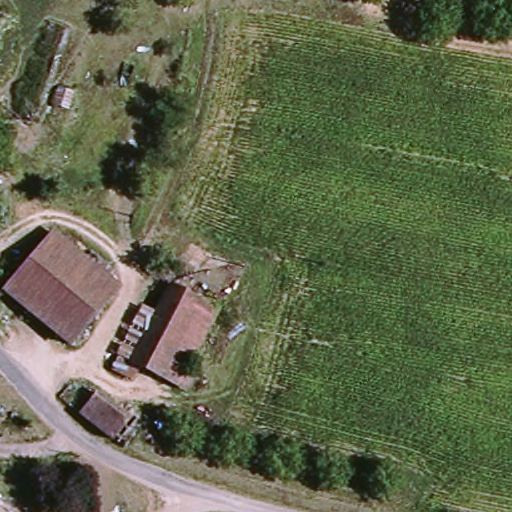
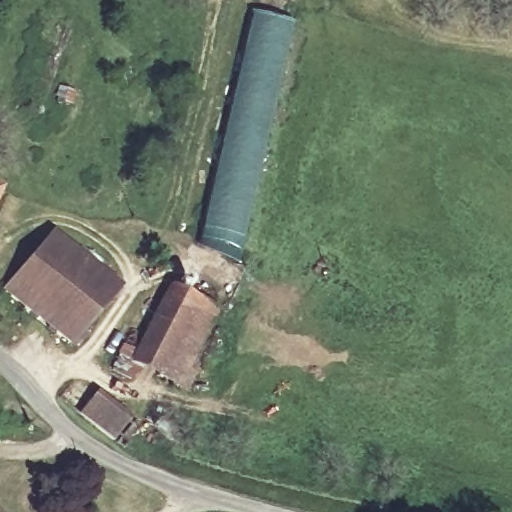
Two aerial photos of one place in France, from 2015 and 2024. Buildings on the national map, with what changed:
new [(227,107),(251,11),(291,22),(248,213),(230,205),(228,204),(229,201),(209,194),(227,107)]
unchanged [(1,188),(0,191),(0,188),(1,188)]
unchanged [(102,271),(97,277),(116,296),(65,352),(0,289),(50,236),(82,268),(91,259),(102,271)]
unchanged [(182,389),(134,369),(165,283),(215,303),(182,389)]
unchanged [(97,394),(125,412),(110,435),(82,418),(97,394)]

